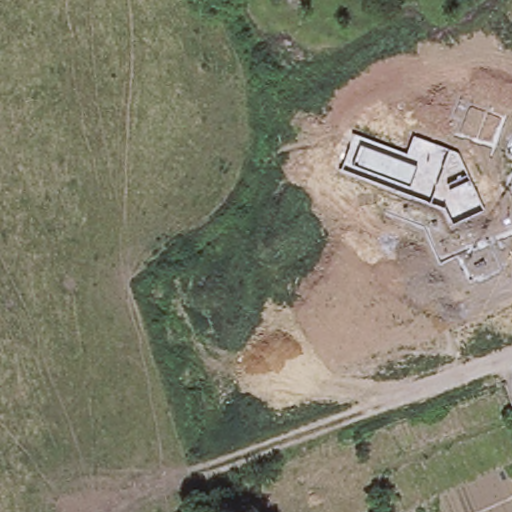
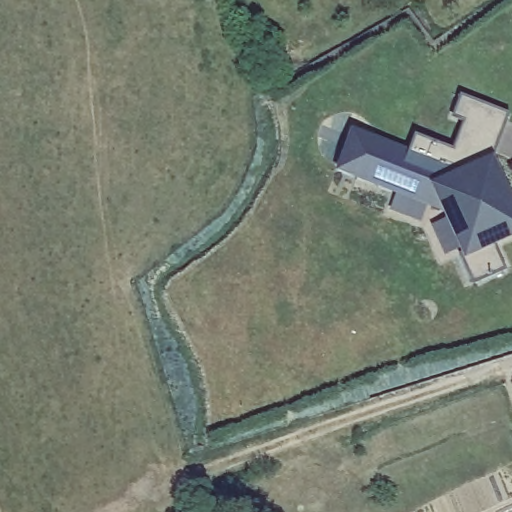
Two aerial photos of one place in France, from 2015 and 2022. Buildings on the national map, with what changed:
new [(462,262),(434,203),(335,171),(351,128),(408,151),(413,136),(452,152),(463,123),(452,119),(460,99),(507,115),(493,159),(512,202),(512,238),(493,247),(503,272),(472,285),(462,262)]

